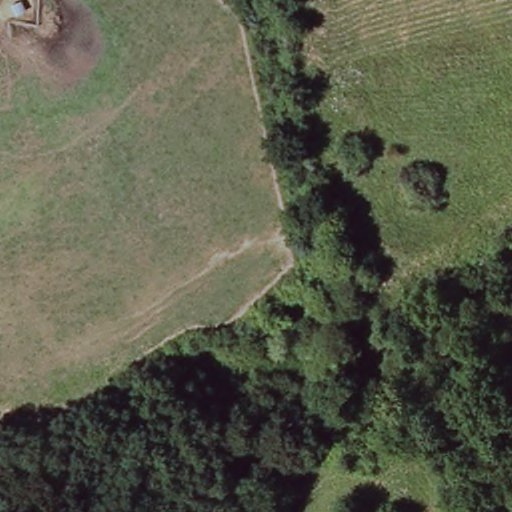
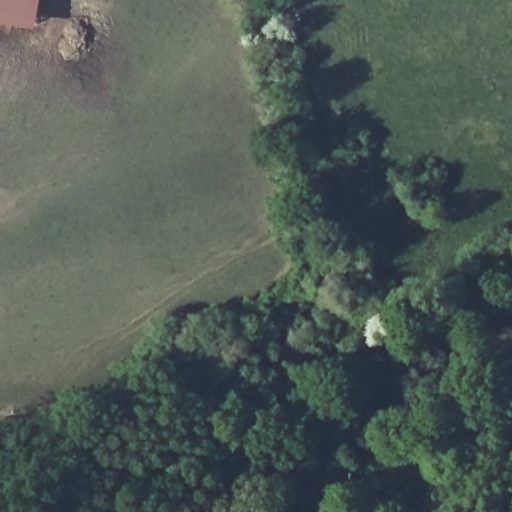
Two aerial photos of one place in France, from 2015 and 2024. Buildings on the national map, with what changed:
new [(36,29),(0,23),(0,0),(41,0),(36,29)]

